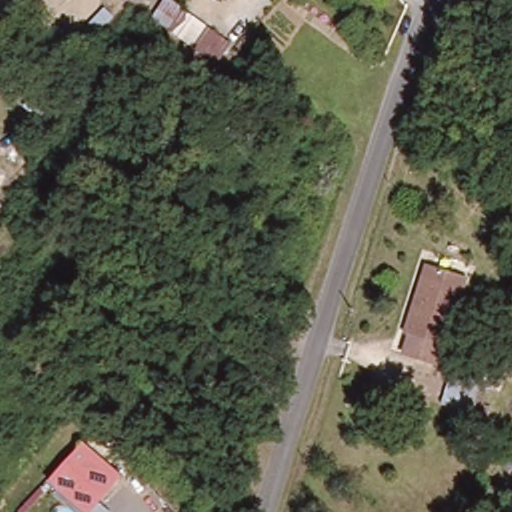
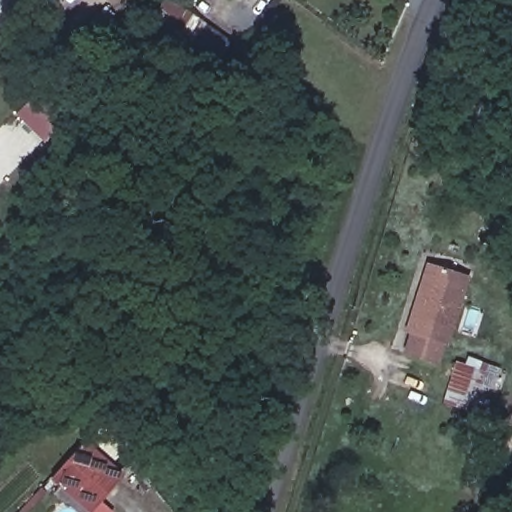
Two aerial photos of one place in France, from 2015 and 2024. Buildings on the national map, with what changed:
unchanged [(218,66),(141,10),(146,0),(174,0),(232,40),(218,66)]
unchanged [(448,336),(445,335),(438,356),(405,345),(412,325),(407,321),(415,292),(425,258),(432,260),(467,271),(448,336)]
unchanged [(479,388),(470,417),(442,407),(451,379),(479,388)]
unchanged [(93,498),(108,512),(90,512),(87,502),(79,511),(67,500),(75,490),(51,465),(82,433),(119,472),(93,498)]

